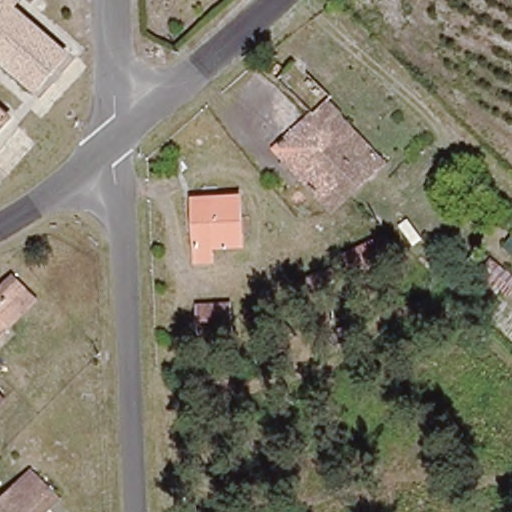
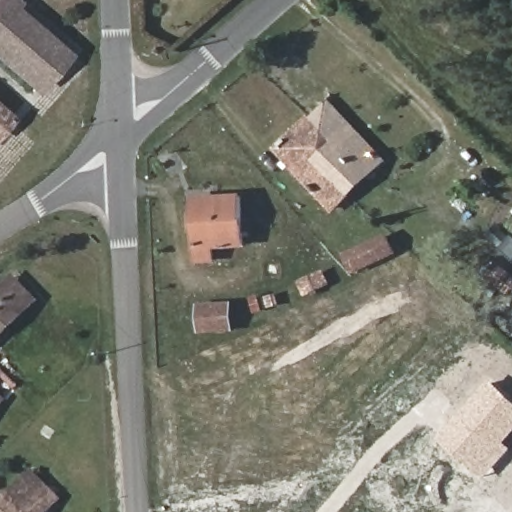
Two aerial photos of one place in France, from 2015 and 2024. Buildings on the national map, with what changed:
unchanged [(0,56),(0,0),(12,0),(70,54),(36,90),(0,56)]
unchanged [(270,149),(311,110),(326,95),(387,162),(330,211),(270,149)]
unchanged [(0,125),(0,114),(5,120),(0,125)]
unchanged [(195,247),(192,200),(242,197),(244,245),(195,247)]
unchanged [(386,231),(396,255),(351,274),(342,252),(386,231)]
unchanged [(488,255),(512,272),(512,286),(506,293),(476,271),(488,255)]
unchanged [(331,265),(338,280),(300,298),(294,281),(331,265)]
unchanged [(9,275),(31,298),(0,329),(0,284),(9,275)]
unchanged [(237,332),(200,335),(200,300),(235,302),(237,332)]
new [(436,437),(490,379),(512,400),(512,433),(503,442),(510,449),(483,478),(436,437)]
unchanged [(27,470),(54,496),(38,512),(0,512),(0,497),(27,470)]

